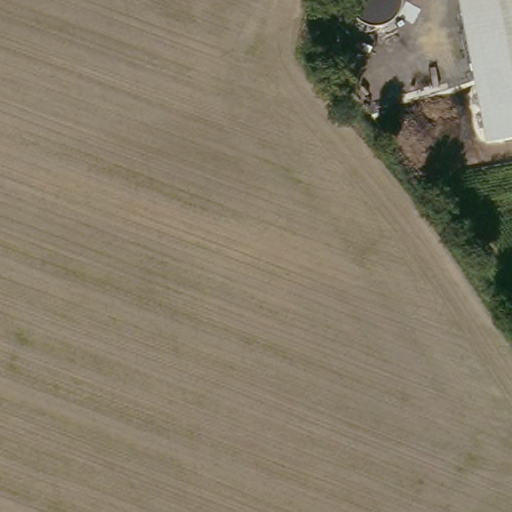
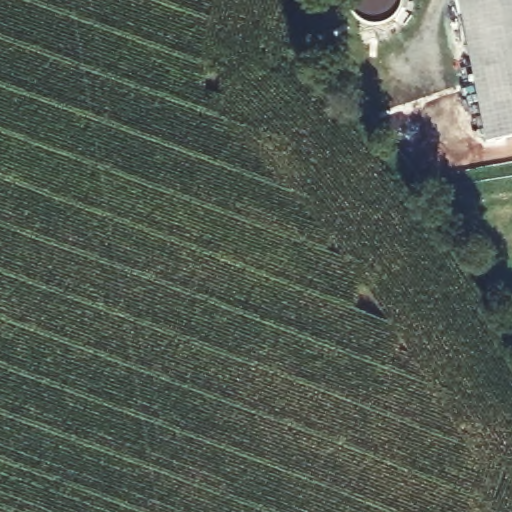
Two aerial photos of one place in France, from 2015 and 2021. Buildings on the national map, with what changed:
unchanged [(460,0),(512,0),(512,137),(486,141),(460,0)]

